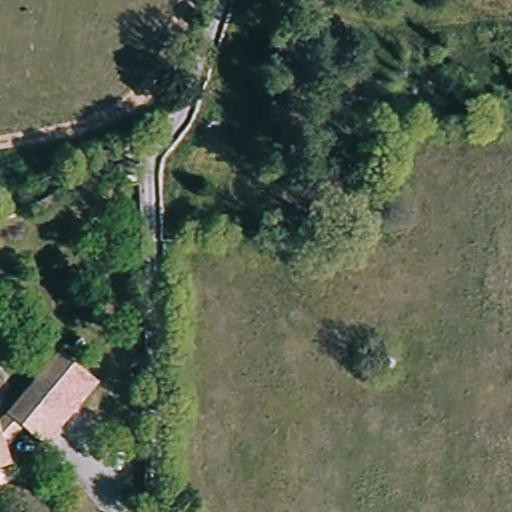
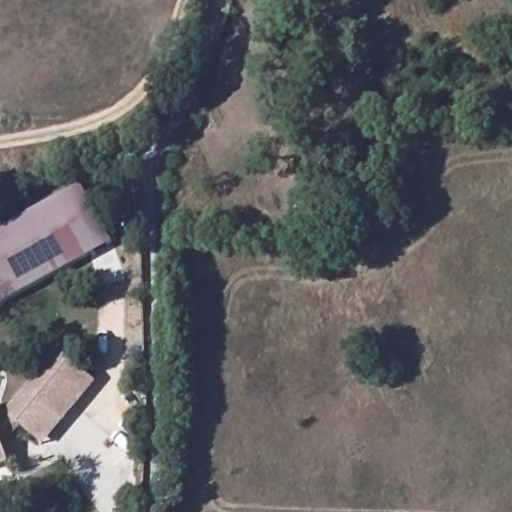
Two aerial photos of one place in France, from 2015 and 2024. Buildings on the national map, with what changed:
new [(79,191),(112,249),(3,311),(0,306),(0,235),(79,191)]
unchanged [(48,347),(80,377),(45,415),(13,384),(48,347)]
unchanged [(20,441),(0,422),(0,397),(13,384),(45,415),(20,441)]

